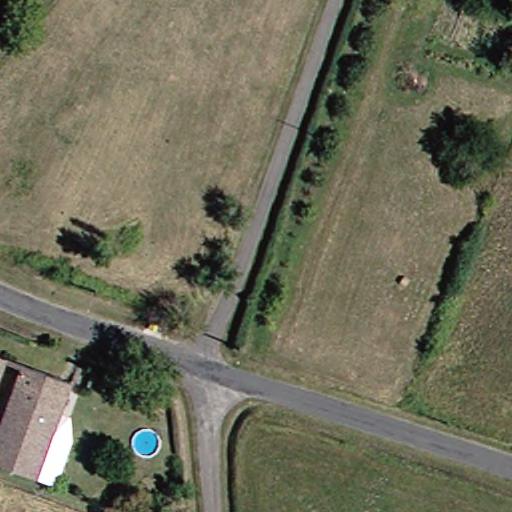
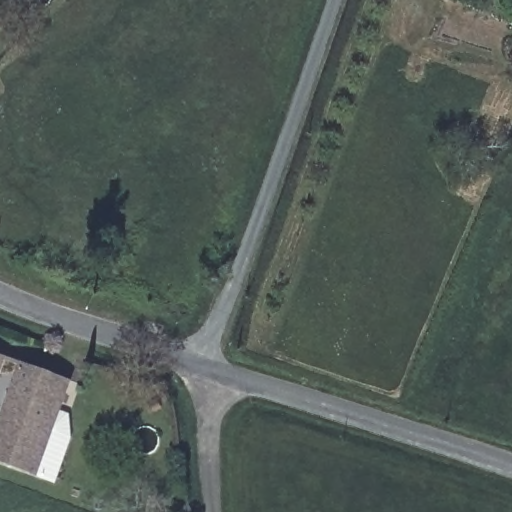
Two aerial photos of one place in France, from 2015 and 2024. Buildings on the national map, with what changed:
unchanged [(78,379),(64,412),(43,475),(0,458),(0,430),(6,413),(0,410),(0,353),(78,379)]
unchanged [(75,415),(79,435),(61,481),(43,475),(64,412),(75,415)]

